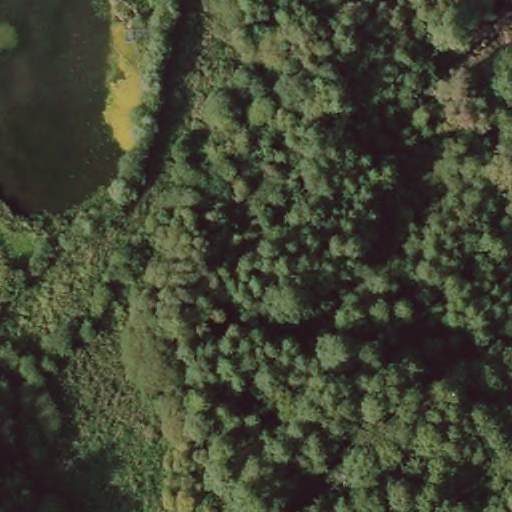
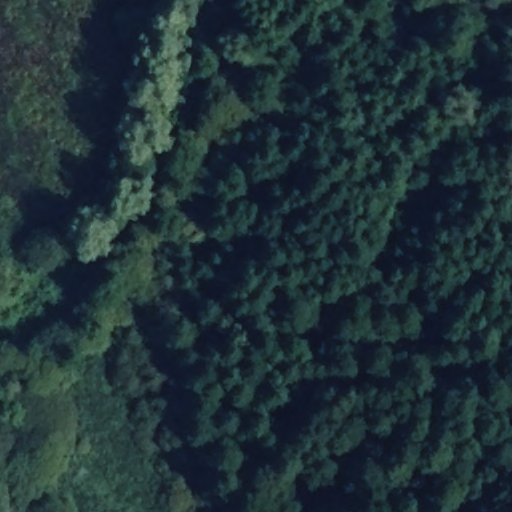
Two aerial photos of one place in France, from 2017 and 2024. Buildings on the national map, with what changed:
[]

